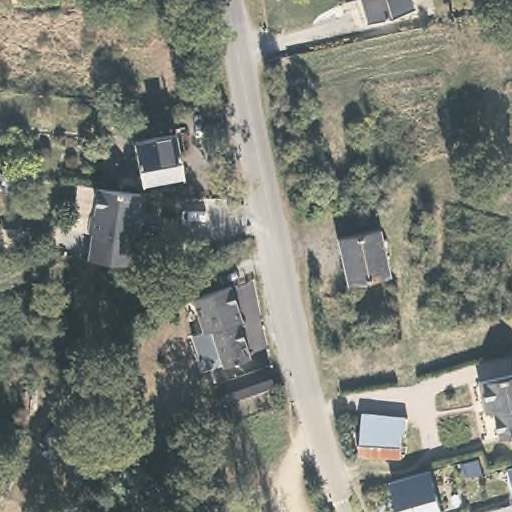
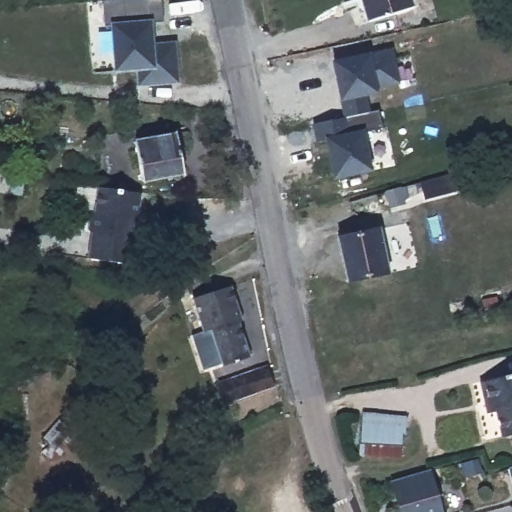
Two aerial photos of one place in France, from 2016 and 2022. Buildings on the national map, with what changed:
new [(135,71),(114,73),(110,26),(104,27),(102,1),(109,0),(160,0),(162,21),(152,21),(154,43),(175,41),(178,84),(137,86),(135,71)]
unchanged [(368,21),(362,0),(411,0),(413,9),(368,21)]
new [(399,84),(376,89),(377,94),(365,96),(368,111),(378,110),(382,129),(364,132),(372,172),(332,180),(324,141),(315,143),(311,124),(342,117),(339,101),(330,61),(368,53),(391,48),(399,84)]
unchanged [(185,146),(177,148),(182,174),(141,183),(134,141),(175,133),(174,128),(180,126),(185,146)]
unchanged [(90,258),(93,237),(89,230),(90,222),(91,214),(96,211),(98,189),(117,191),(143,195),(139,228),(136,242),(134,263),(90,258)]
unchanged [(388,274),(347,283),(337,238),(379,230),(388,274)]
unchanged [(242,319),(237,320),(249,356),(221,366),(220,362),(202,368),(190,333),(201,329),(191,294),(231,284),(242,319)]
unchanged [(272,387),(225,406),(217,386),(265,367),(272,387)]
unchanged [(495,410),(487,411),(481,380),(512,373),(512,433),(501,436),(495,410)]
unchanged [(360,460),(360,432),(359,418),(400,417),(400,432),(401,458),(360,460)]
unchanged [(75,435),(59,456),(49,448),(65,427),(75,435)]
new [(512,467),(512,487),(506,469),(512,467)]
unchanged [(434,488),(441,512),(400,512),(391,484),(430,472),(434,488)]
unchanged [(468,509),(459,512),(454,512),(450,501),(464,497),(468,509)]

